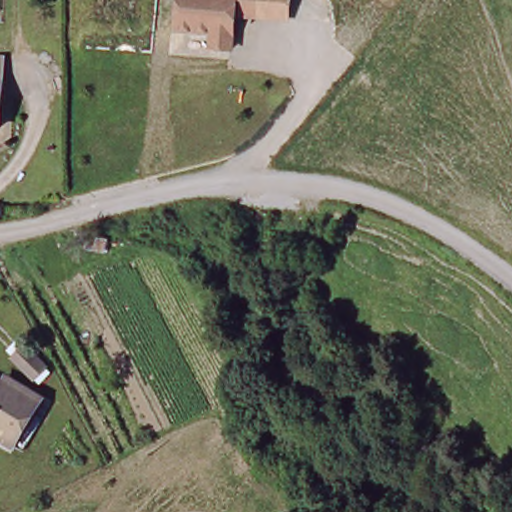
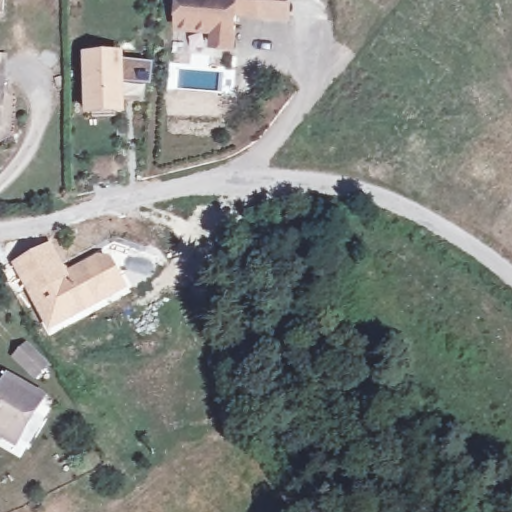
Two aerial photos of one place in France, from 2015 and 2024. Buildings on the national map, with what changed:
unchanged [(236,45),(214,43),(215,28),(180,24),(183,0),(265,0),(265,12),(237,12),(236,45)]
new [(85,117),(85,52),(122,52),(122,59),(155,63),(152,86),(125,83),(124,116),(85,117)]
unchanged [(6,123),(0,123),(0,54),(7,54),(6,123)]
new [(50,240),(66,269),(104,248),(128,290),(47,334),(8,263),(50,240)]
unchanged [(16,358),(25,345),(55,370),(40,384),(16,358)]
unchanged [(12,445),(0,438),(0,386),(5,377),(40,400),(12,445)]

